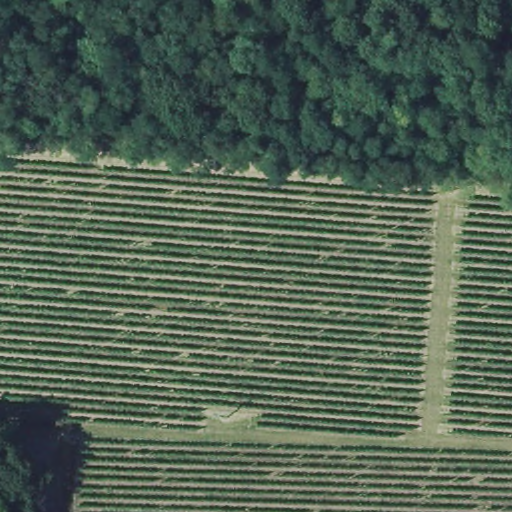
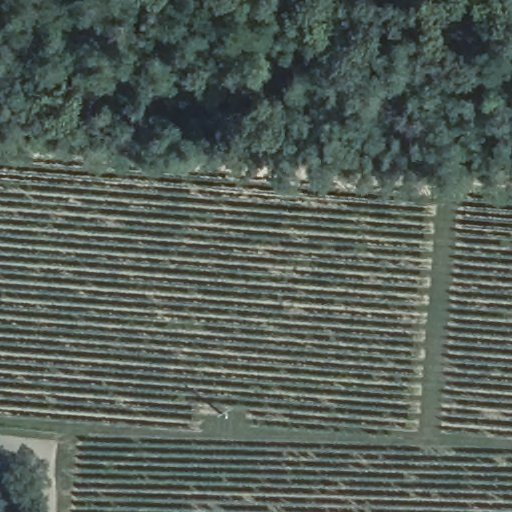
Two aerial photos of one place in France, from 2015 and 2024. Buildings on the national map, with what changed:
[]

